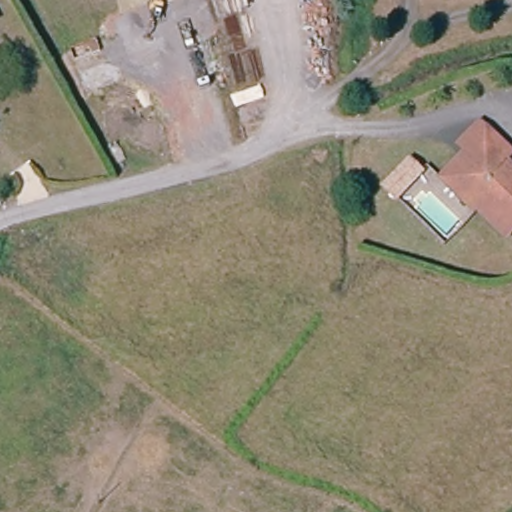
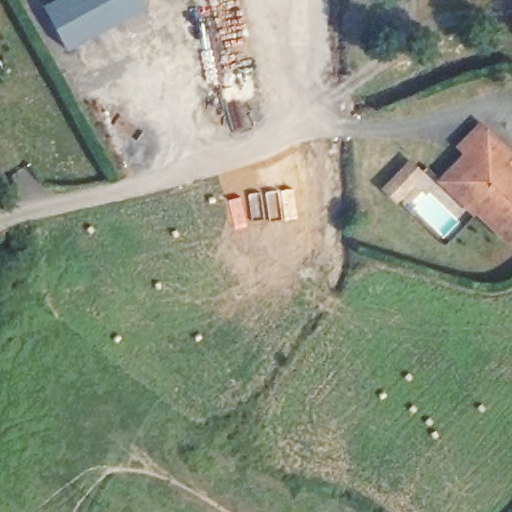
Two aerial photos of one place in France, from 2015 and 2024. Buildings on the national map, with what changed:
new [(68,51),(42,5),(53,0),(144,0),(147,6),(68,51)]
unchanged [(454,184),(468,169),(460,161),(455,159),(477,134),(505,155),(498,164),(512,177),(512,233),(503,243),(471,215),(478,207),(454,184)]
unchanged [(466,221),(432,193),(460,161),(468,169),(454,184),(478,207),(471,215),(466,221)]

